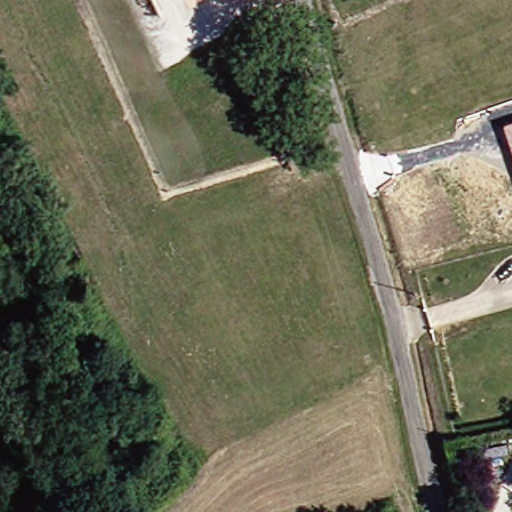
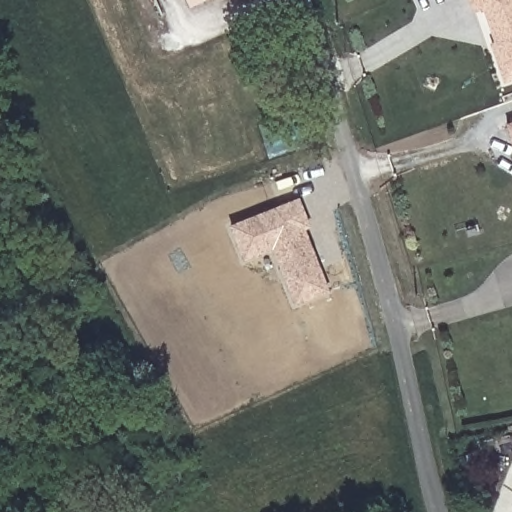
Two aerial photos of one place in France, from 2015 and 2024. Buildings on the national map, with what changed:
unchanged [(503,83),(490,44),(494,43),(482,11),(474,14),(468,0),(512,0),(512,80),(503,83)]
unchanged [(506,124),(512,122),(512,143),(506,124)]
new [(229,226),(299,198),(310,228),(306,230),(329,291),(295,304),(272,250),(243,261),(229,226)]

